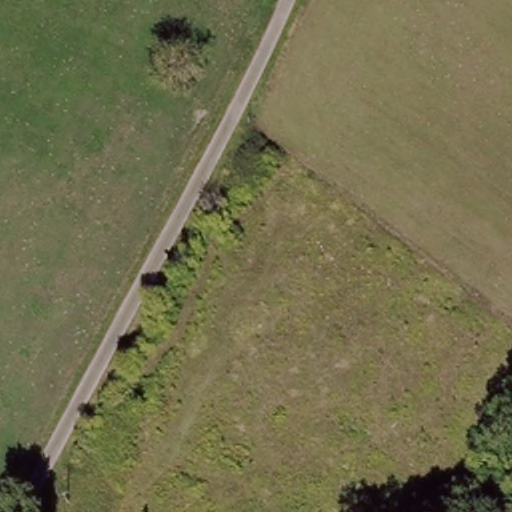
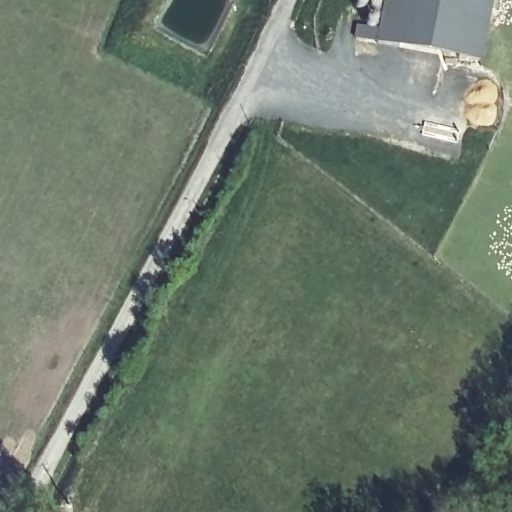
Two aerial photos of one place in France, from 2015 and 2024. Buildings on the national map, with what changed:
new [(491,0),(479,61),(457,57),(462,33),(403,21),(398,46),(377,41),(385,0),(491,0)]
new [(403,21),(462,33),(457,57),(398,46),(403,21)]

